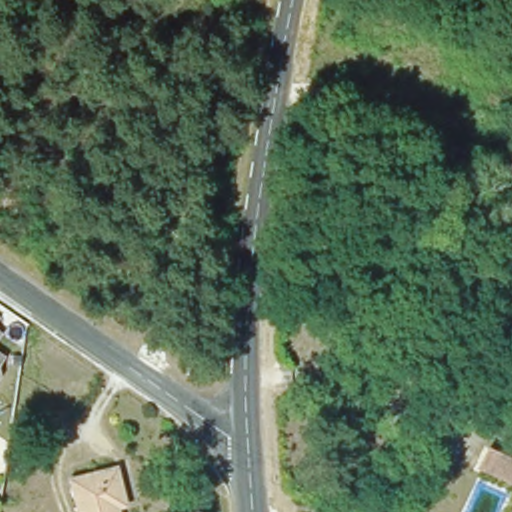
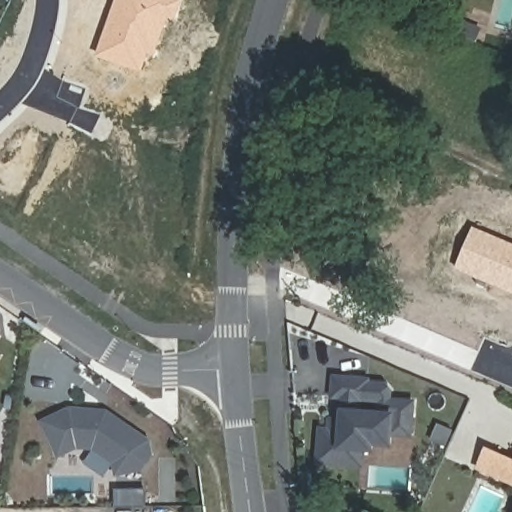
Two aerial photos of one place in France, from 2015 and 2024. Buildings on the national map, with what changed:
new [(168,19),(155,57),(149,55),(142,72),(96,57),(116,0),(182,0),(176,21),(168,19)]
new [(473,227),(512,244),(512,293),(456,269),(473,227)]
new [(394,436),(393,447),(375,447),(374,452),(365,452),(363,467),(319,465),(321,427),(329,428),(331,417),(338,417),(339,399),(331,399),(332,377),(370,378),(370,382),(387,382),(394,394),(394,400),(416,401),(413,437),(394,436)]
new [(151,455),(141,470),(115,475),(112,463),(91,449),(76,447),(57,455),(41,420),(70,407),(99,408),(107,410),(118,417),(149,440),(151,455)]
unchanged [(481,443),(508,456),(512,446),(512,482),(472,462),(481,443)]
demolished [(118,471),(126,507),(118,509),(118,512),(80,512),(74,482),(118,471)]

